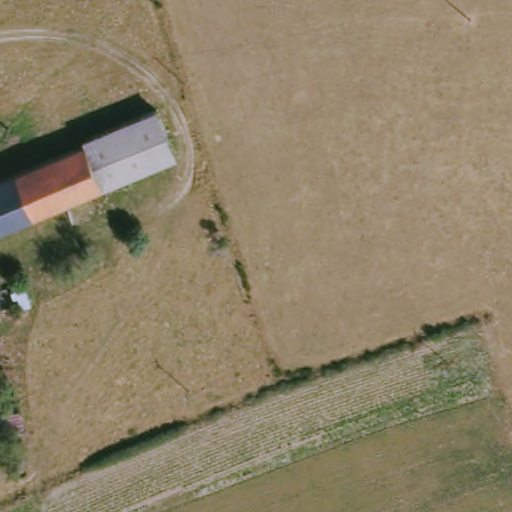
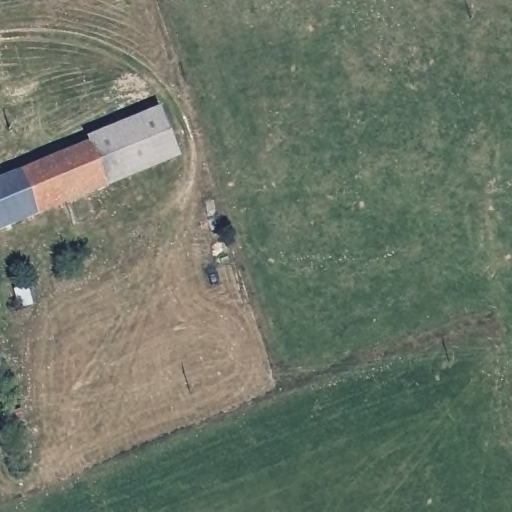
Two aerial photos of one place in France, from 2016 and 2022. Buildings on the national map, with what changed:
unchanged [(92,146),(89,141),(160,111),(178,153),(180,155),(110,185),(92,146)]
unchanged [(0,231),(0,184),(92,146),(110,185),(0,231)]
unchanged [(24,285),(31,301),(22,305),(14,288),(24,285)]
unchanged [(20,409),(25,429),(5,433),(0,414),(20,409)]

